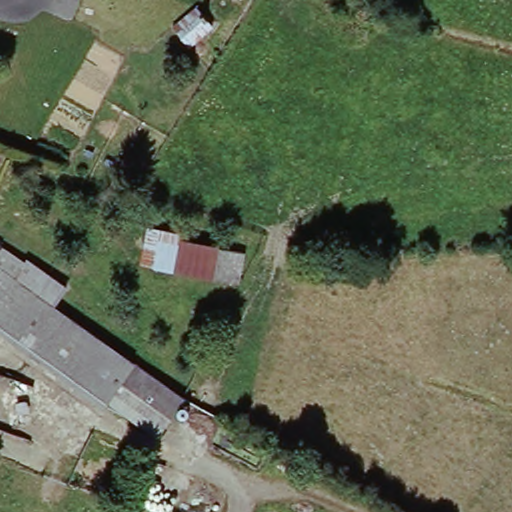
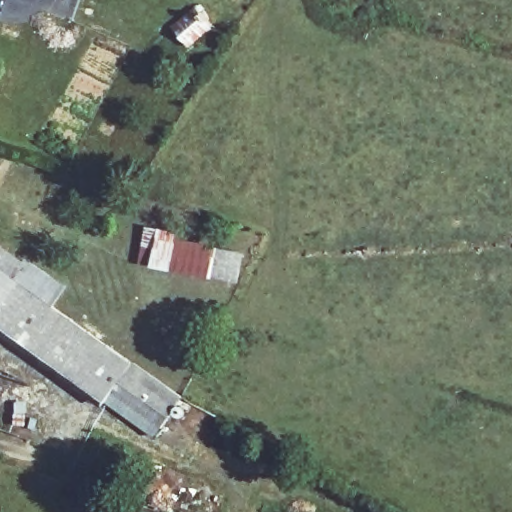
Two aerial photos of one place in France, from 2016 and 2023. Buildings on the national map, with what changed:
unchanged [(200,10),(216,30),(194,49),(177,29),(200,10)]
unchanged [(155,232),(248,257),(242,288),(146,267),(155,232)]
unchanged [(0,260),(0,240),(9,246),(0,260)]
unchanged [(161,434),(113,400),(108,405),(0,333),(0,267),(1,265),(190,393),(161,434)]

